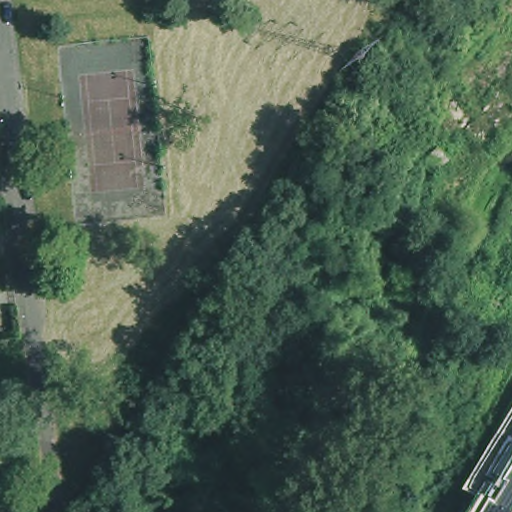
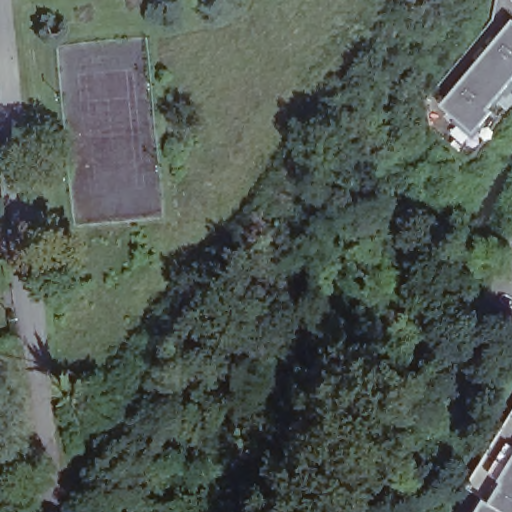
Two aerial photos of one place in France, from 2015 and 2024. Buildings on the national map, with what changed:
new [(436,107),(512,18),(512,88),(471,136),(436,107)]
unchanged [(388,237),(397,242),(387,260),(378,254),(388,237)]
unchanged [(475,499),(461,490),(512,406),(512,512),(468,512),(475,499)]

